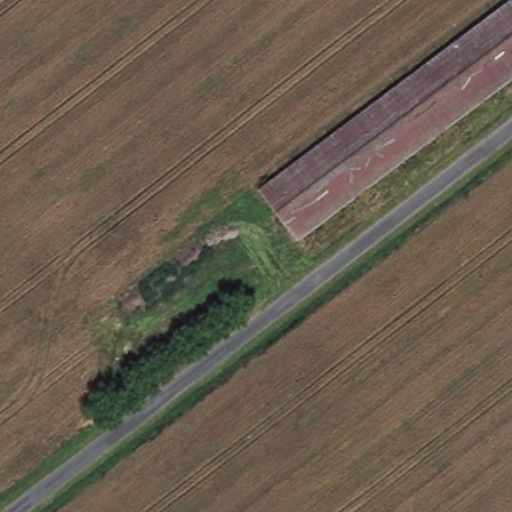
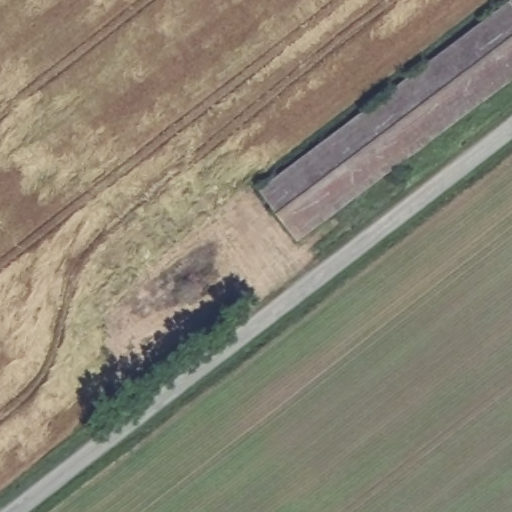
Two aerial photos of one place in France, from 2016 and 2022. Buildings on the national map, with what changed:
unchanged [(512,7),(512,74),(437,131),(299,241),(294,243),(260,199),(412,80),(512,7)]

